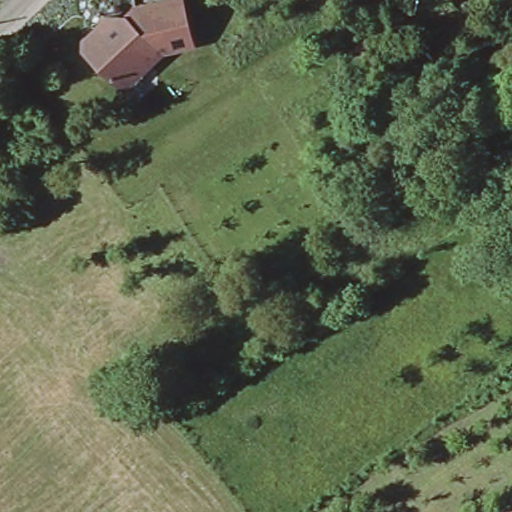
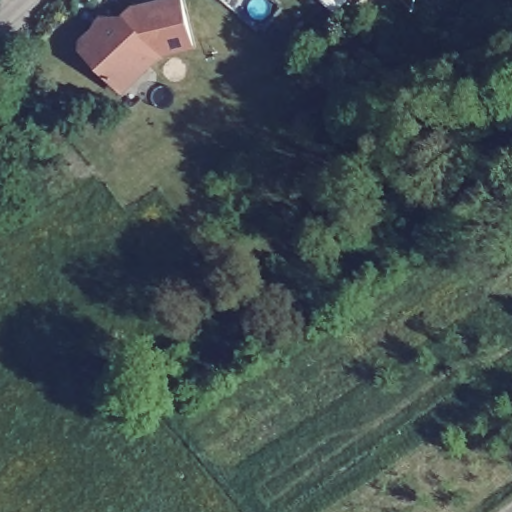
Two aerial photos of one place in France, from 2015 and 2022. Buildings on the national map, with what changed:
unchanged [(110,79),(80,48),(81,39),(92,28),(101,17),(121,16),(131,7),(145,4),(160,0),(180,0),(190,45),(188,46),(160,52),(139,72),(120,90),(110,79)]

